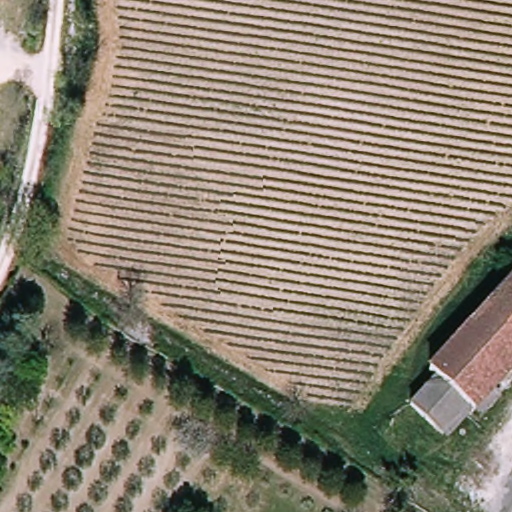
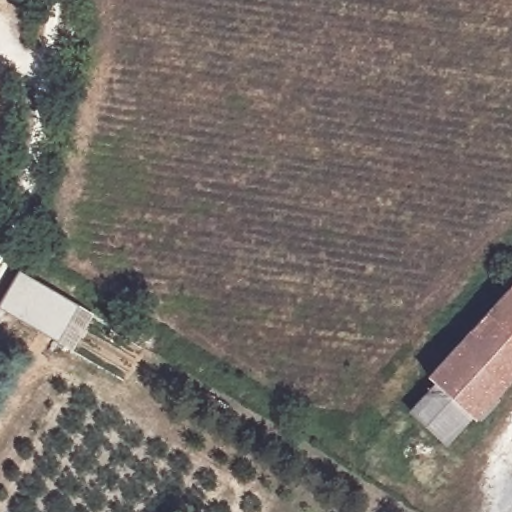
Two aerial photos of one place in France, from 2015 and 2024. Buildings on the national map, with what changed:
new [(79,306),(56,344),(0,308),(0,305),(20,270),(79,306)]
unchanged [(411,419),(433,394),(423,386),(512,282),(512,373),(468,424),(466,422),(442,448),(431,437),(411,419)]

